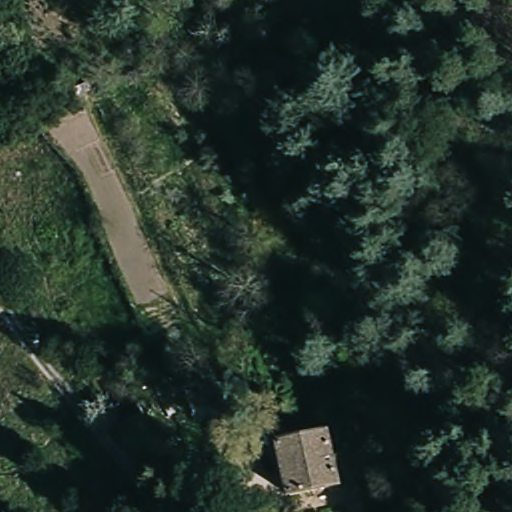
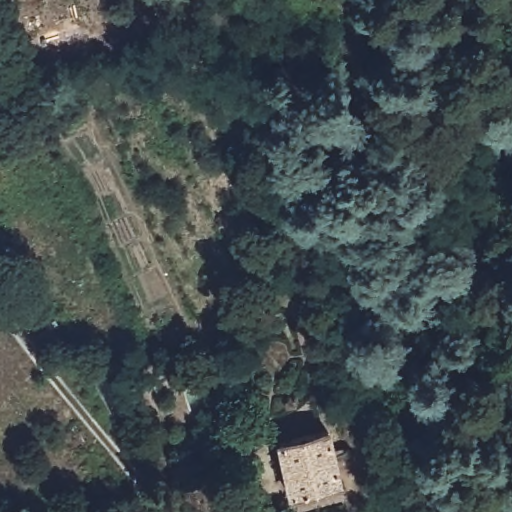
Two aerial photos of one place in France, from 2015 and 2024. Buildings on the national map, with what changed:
unchanged [(275,438),(336,428),(349,494),(289,502),(275,438)]

